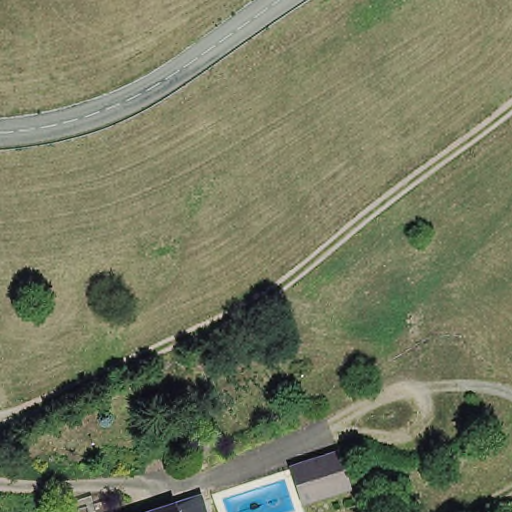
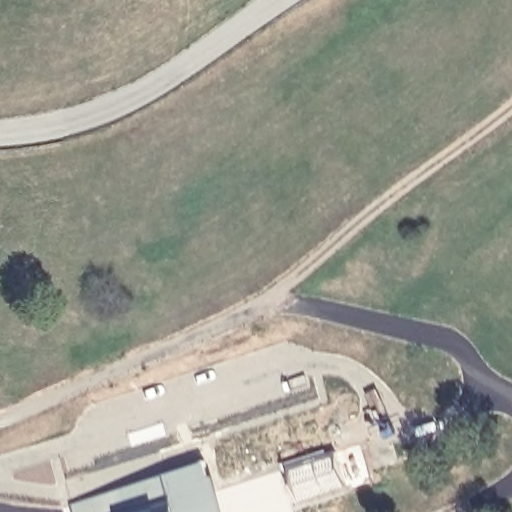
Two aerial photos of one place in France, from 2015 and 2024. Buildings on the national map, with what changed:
unchanged [(343,453),(356,489),(308,505),(295,470),(343,453)]
new [(165,477),(197,466),(206,498),(164,512),(81,512),(78,503),(165,477)]
unchanged [(211,512),(164,512),(206,498),(211,512)]

